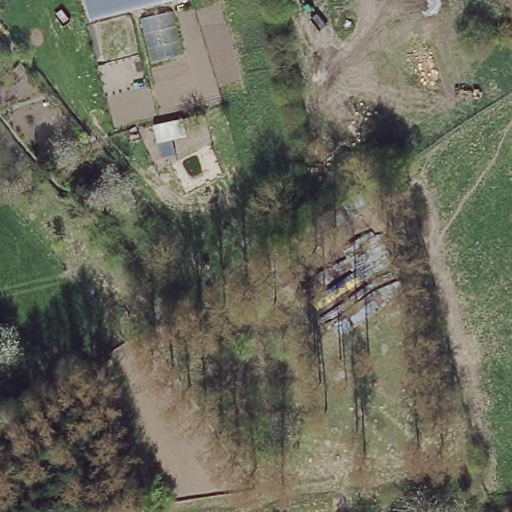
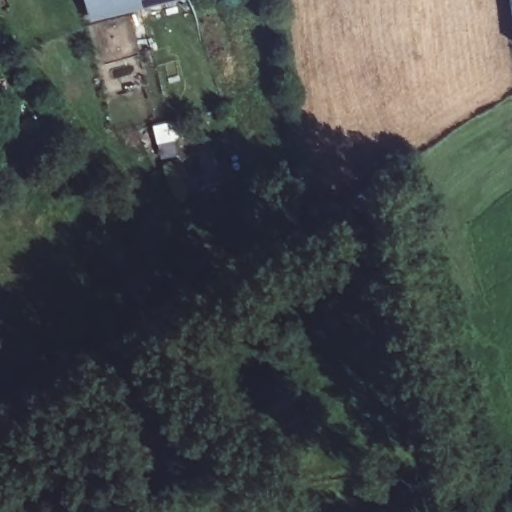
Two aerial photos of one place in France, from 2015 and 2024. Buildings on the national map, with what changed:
unchanged [(184,0),(174,3),(128,15),(130,21),(112,26),(96,30),(88,0),(184,0)]

